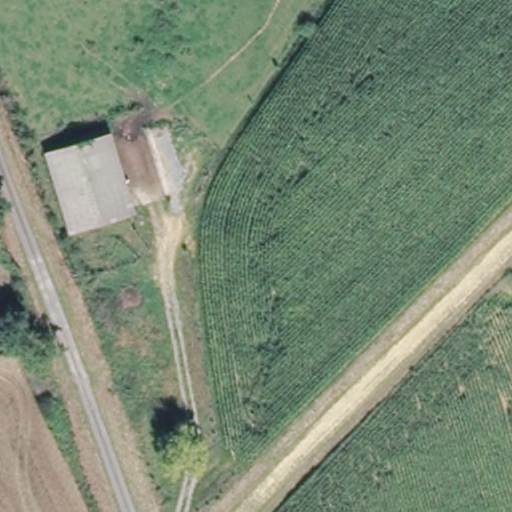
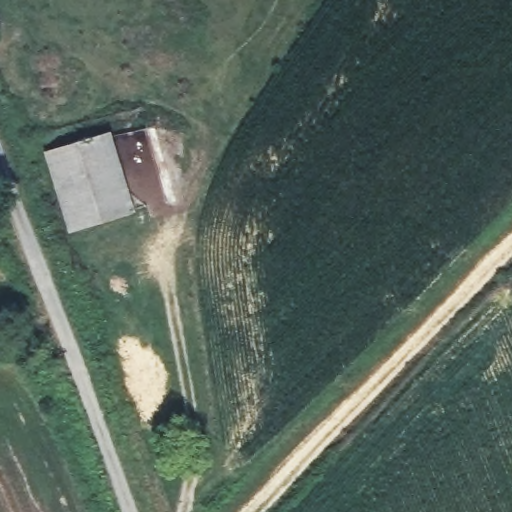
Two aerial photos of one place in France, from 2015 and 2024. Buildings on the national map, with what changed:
unchanged [(132,210),(75,227),(53,151),(111,134),(127,189),(132,210)]

